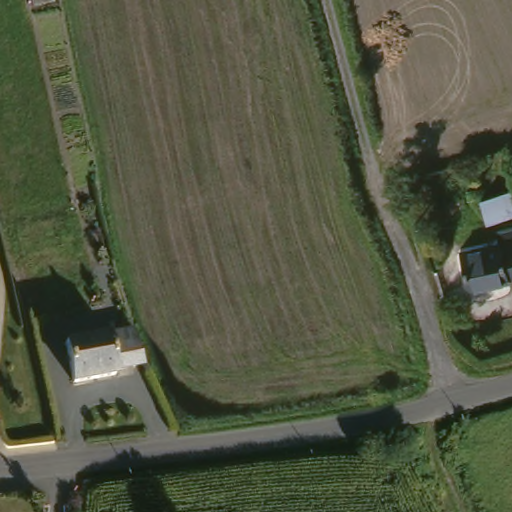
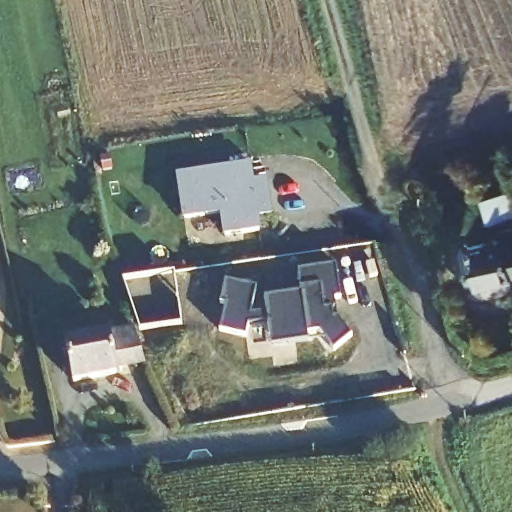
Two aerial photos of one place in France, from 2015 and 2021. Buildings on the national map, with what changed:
new [(251,164),(255,184),(267,182),(273,218),(258,221),(260,233),(222,239),(219,217),(183,223),(176,176),(251,164)]
unchanged [(512,230),(511,227),(512,227),(512,230)]
unchanged [(473,247),(512,234),(512,279),(485,287),(473,247)]
new [(224,282),(255,291),(250,315),(265,314),(264,300),(301,295),(297,273),(335,267),(340,299),(334,300),(337,319),(351,336),(333,349),(325,339),(307,341),(270,347),(266,325),(248,327),(245,338),(219,331),(224,306),(219,305),(224,282)]
unchanged [(146,360),(115,366),(115,369),(80,375),(74,338),(140,327),(146,360)]

